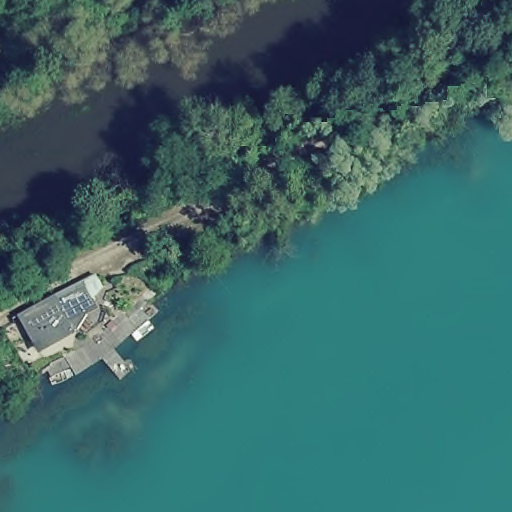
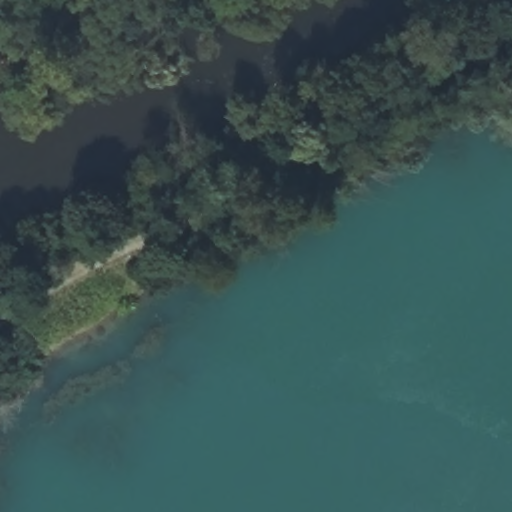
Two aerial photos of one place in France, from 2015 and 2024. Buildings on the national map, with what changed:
unchanged [(28,364),(9,326),(55,296),(60,301),(83,284),(98,305),(85,317),(89,324),(28,364)]

